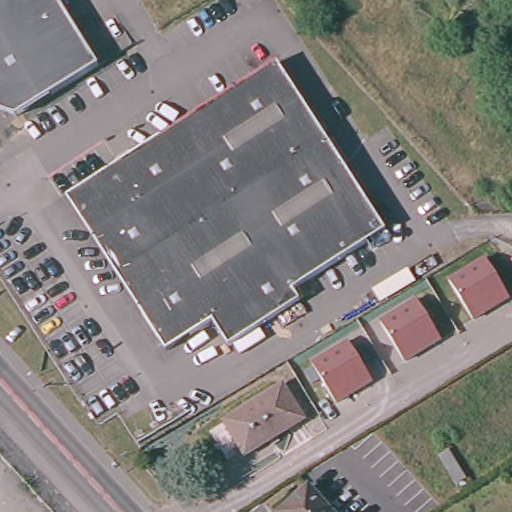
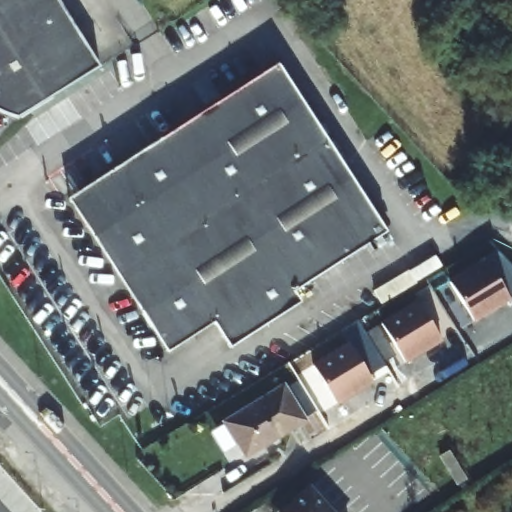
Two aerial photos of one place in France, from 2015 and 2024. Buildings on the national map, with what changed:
unchanged [(56,0),(99,68),(18,118),(2,113),(0,112),(0,0),(56,0)]
unchanged [(272,64),(382,232),(289,292),(295,303),(225,350),(207,324),(162,354),(63,200),(272,64)]
unchanged [(512,298),(475,322),(449,281),(485,258),(512,298)]
unchanged [(442,341),(405,362),(382,322),(418,300),(442,341)]
unchanged [(373,385),(337,405),(312,364),(348,343),(373,385)]
unchanged [(277,387),(300,421),(242,457),(220,423),(277,387)]
unchanged [(448,452),(467,480),(457,485),(440,458),(448,452)]
unchanged [(307,489),(329,512),(283,512),(307,489)]

